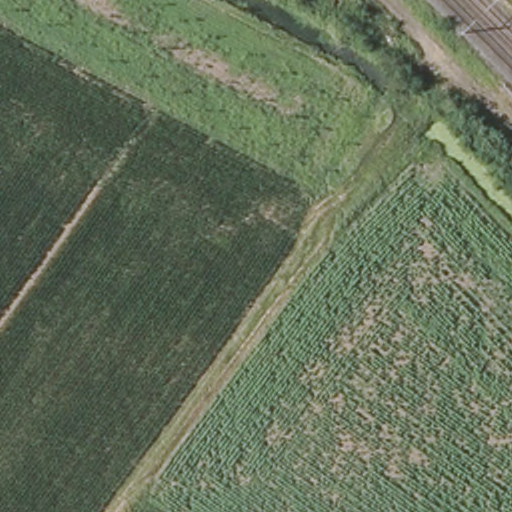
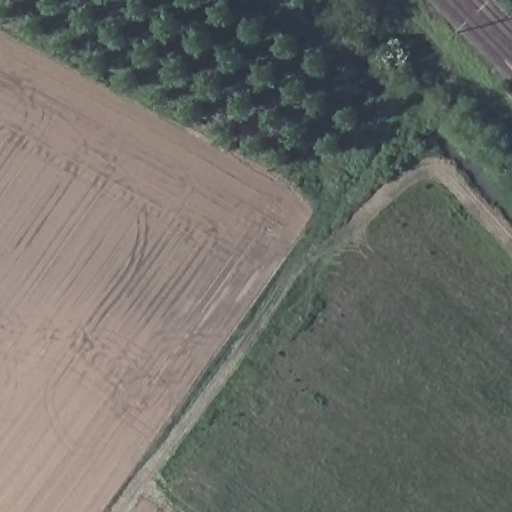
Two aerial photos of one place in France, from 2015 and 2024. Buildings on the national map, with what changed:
[]

